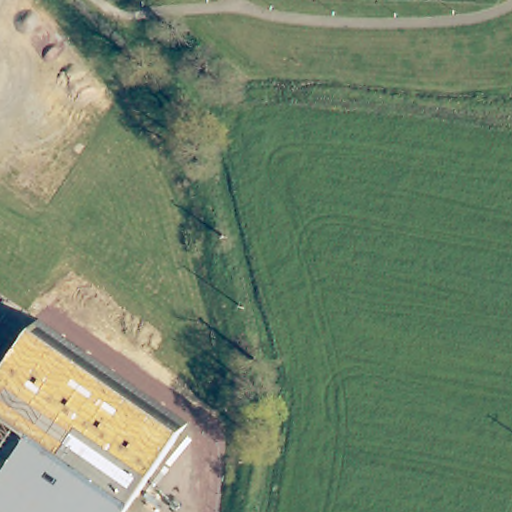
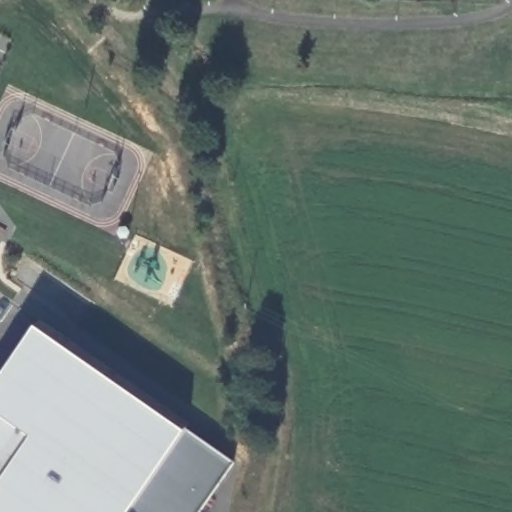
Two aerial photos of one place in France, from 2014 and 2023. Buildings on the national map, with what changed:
unchanged [(40,320),(189,426),(130,512),(0,512),(0,378),(40,320)]
new [(199,512),(130,512),(184,432),(232,464),(199,512)]

